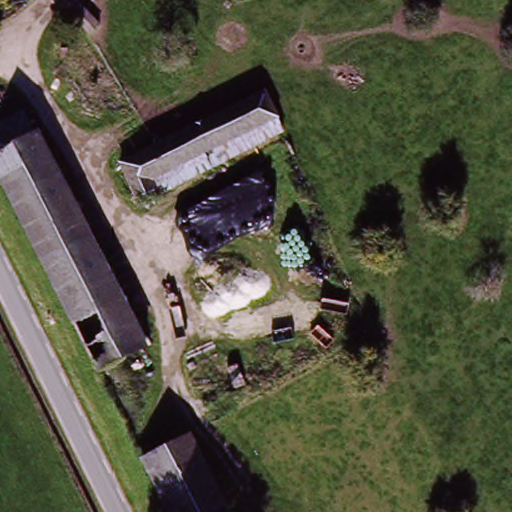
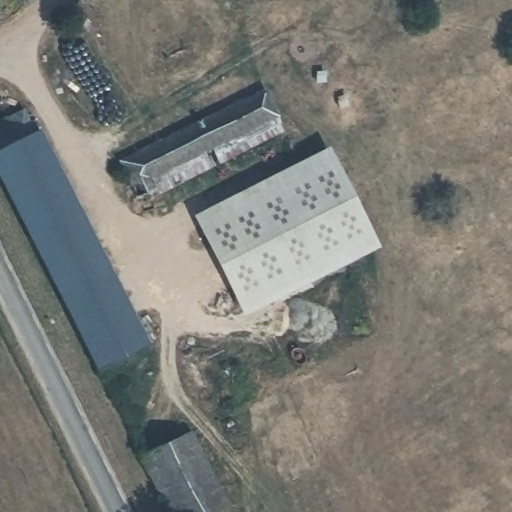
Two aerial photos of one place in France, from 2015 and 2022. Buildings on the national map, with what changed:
unchanged [(150,191),(135,199),(115,163),(241,97),(257,88),(272,116),(255,125),(145,181),(150,191)]
unchanged [(102,376),(0,183),(0,135),(25,121),(37,145),(41,143),(90,235),(150,350),(102,376)]
new [(380,250),(243,319),(197,226),(193,228),(188,218),(328,148),(380,250)]
unchanged [(190,442),(223,508),(215,512),(163,512),(140,468),(190,442)]

